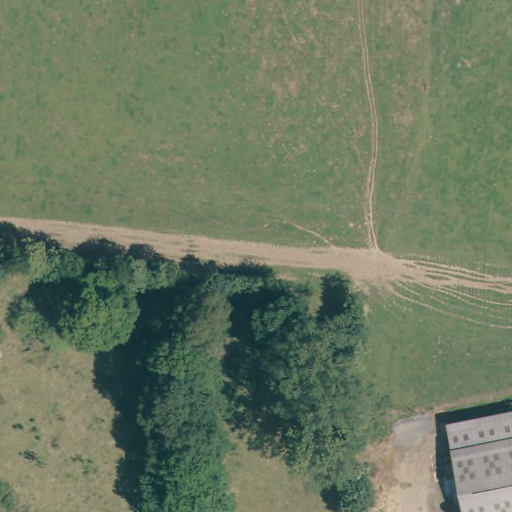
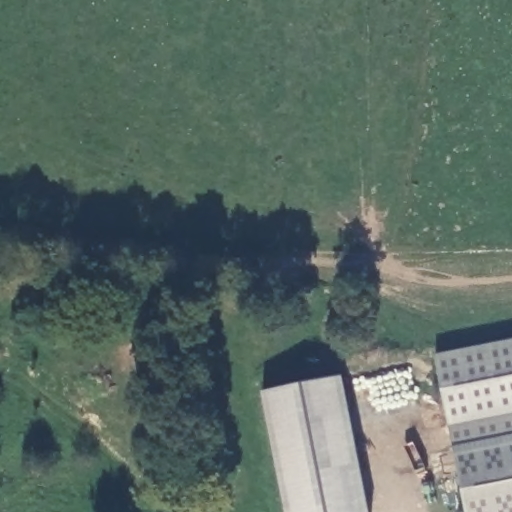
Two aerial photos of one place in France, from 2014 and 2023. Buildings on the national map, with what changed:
new [(447,424),(435,356),(512,341),(512,412),(447,424)]
new [(261,394),(342,377),(369,512),(284,512),(261,394)]
unchanged [(512,412),(512,512),(466,512),(453,449),(447,424),(512,412)]

